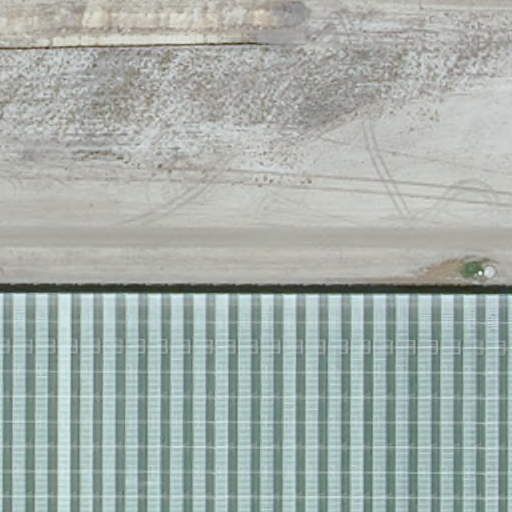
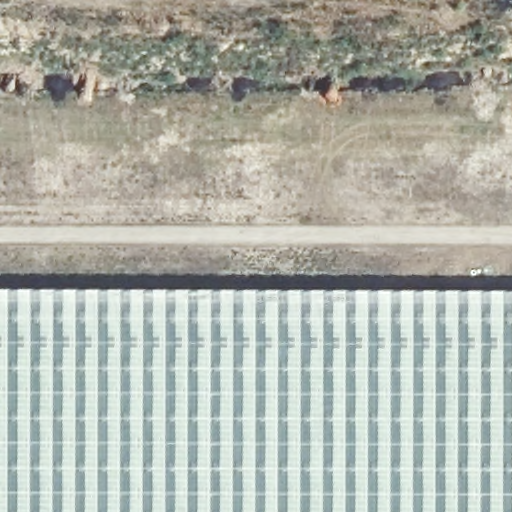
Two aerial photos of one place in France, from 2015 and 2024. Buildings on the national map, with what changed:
unchanged [(0,298),(512,306),(512,512),(0,512),(0,298)]

